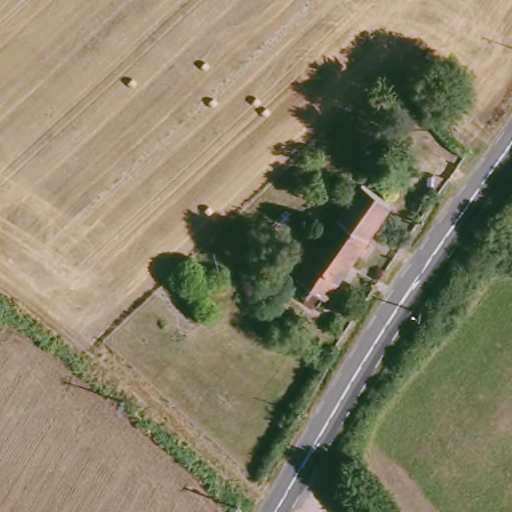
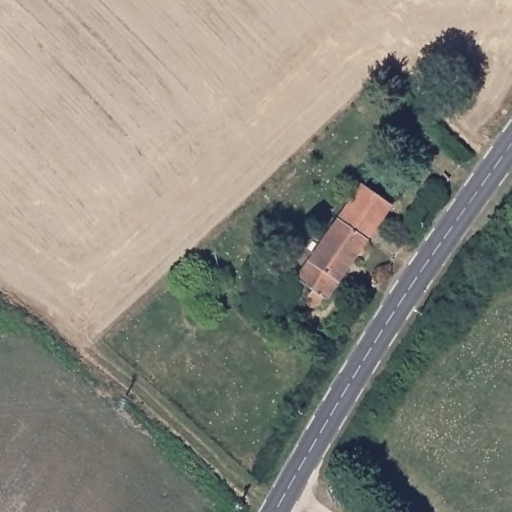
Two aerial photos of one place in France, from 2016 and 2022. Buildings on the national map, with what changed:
unchanged [(338,305),(332,309),(326,309),(323,307),(322,300),(325,292),(312,281),(378,187),(407,208),(338,305)]

